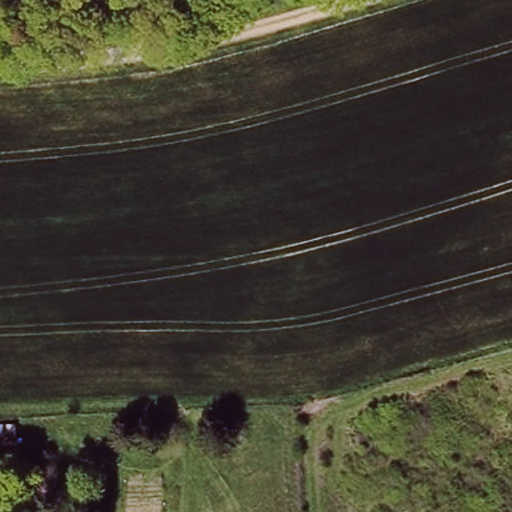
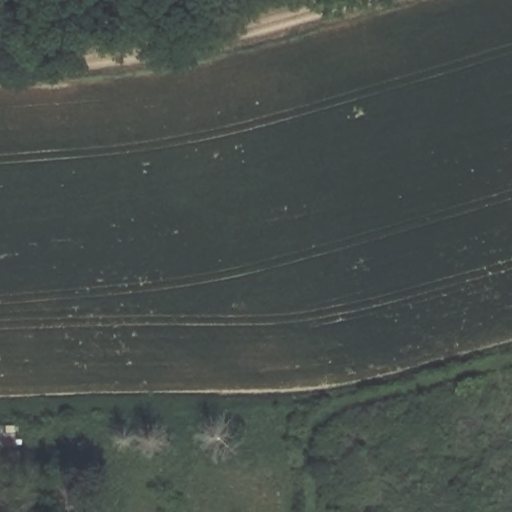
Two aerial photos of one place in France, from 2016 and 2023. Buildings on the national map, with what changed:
unchanged [(16,446),(0,445),(0,428),(15,429),(16,446)]

